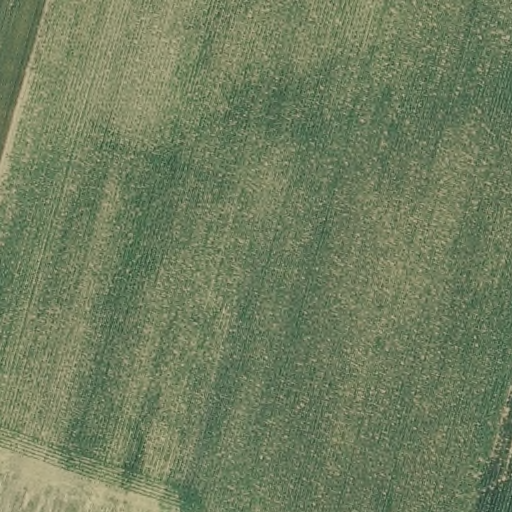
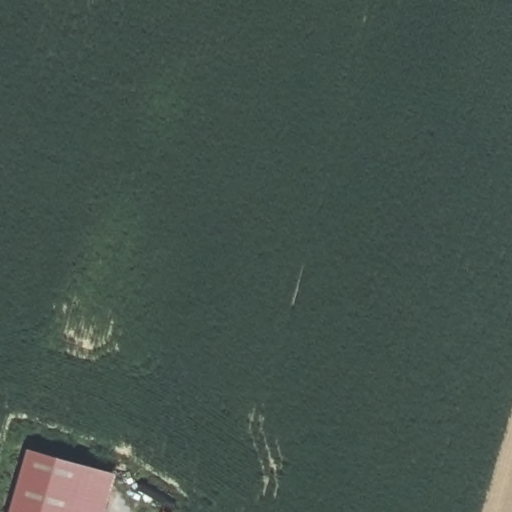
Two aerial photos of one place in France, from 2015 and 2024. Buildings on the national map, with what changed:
new [(30,448),(119,471),(108,512),(12,512),(30,448)]

